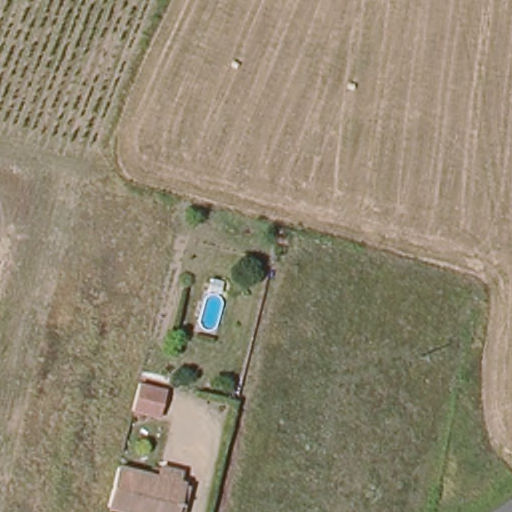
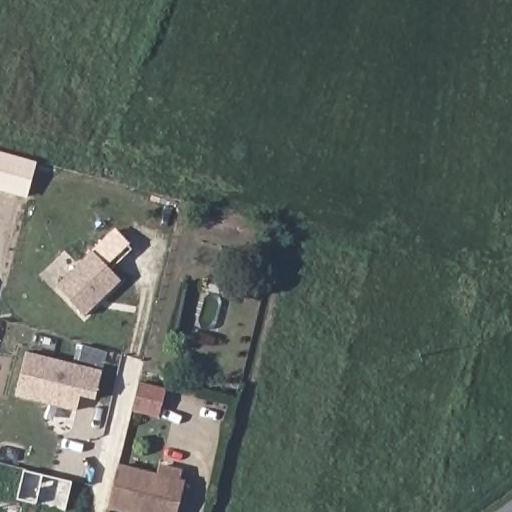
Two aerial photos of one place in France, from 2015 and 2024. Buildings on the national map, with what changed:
new [(27,200),(0,192),(0,152),(37,162),(27,200)]
new [(84,317),(55,286),(92,250),(121,280),(84,317)]
new [(84,397),(79,395),(75,412),(14,397),(25,352),(100,370),(96,393),(84,397)]
unchanged [(138,385),(163,391),(157,417),(131,412),(138,385)]
unchanged [(116,470),(154,480),(159,469),(179,475),(176,486),(183,488),(177,512),(106,512),(116,470)]
new [(16,500),(24,470),(72,481),(65,512),(16,500)]

